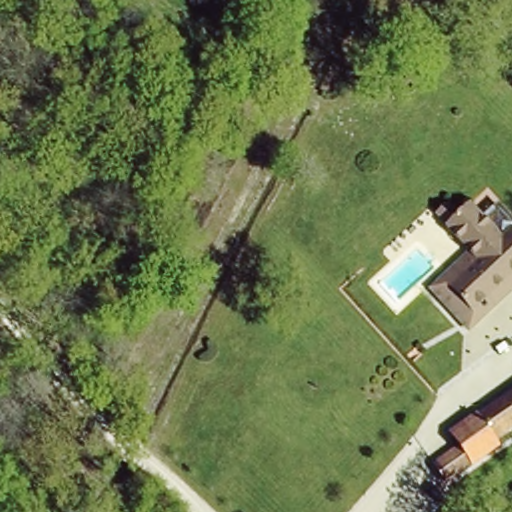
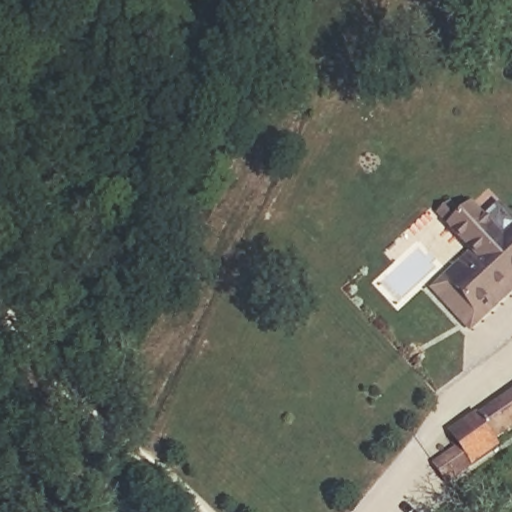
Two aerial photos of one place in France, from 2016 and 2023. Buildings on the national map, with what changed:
unchanged [(479,318),(474,308),(461,322),(436,296),(456,280),(439,270),(471,245),(438,213),(463,189),(508,232),(512,227),(512,292),(479,318)]
unchanged [(434,458),(461,439),(449,427),(512,387),(512,431),(499,440),(506,444),(450,478),(434,458)]

